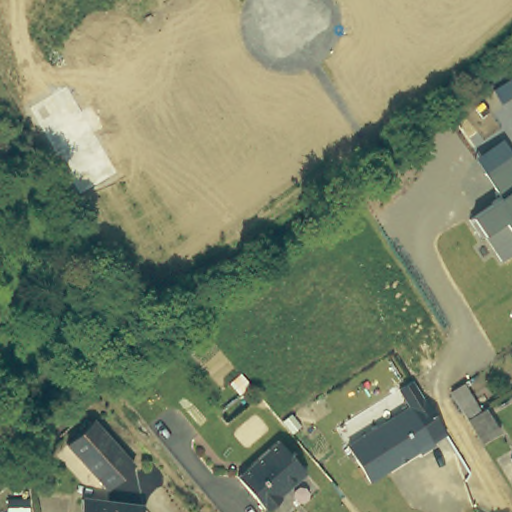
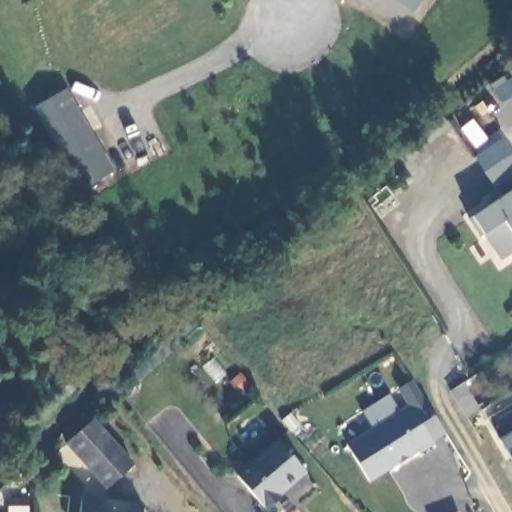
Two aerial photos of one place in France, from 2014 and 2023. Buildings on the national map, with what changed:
new [(396,0),(422,0),(414,12),(396,0)]
new [(67,88),(115,172),(82,192),(31,109),(67,88)]
unchanged [(502,139),(512,153),(512,256),(501,262),(490,247),(472,217),(501,199),(474,157),(502,139)]
unchanged [(474,396),(461,403),(451,386),(462,378),(474,396)]
unchanged [(412,380),(424,400),(444,437),(369,481),(347,445),(408,406),(398,388),(412,380)]
unchanged [(96,420),(137,464),(112,487),(70,443),(96,420)]
unchanged [(300,469),(277,492),(280,495),(267,508),(236,476),(275,438),(300,469)]
unchanged [(146,506),(145,512),(83,512),(85,497),(146,506)]

